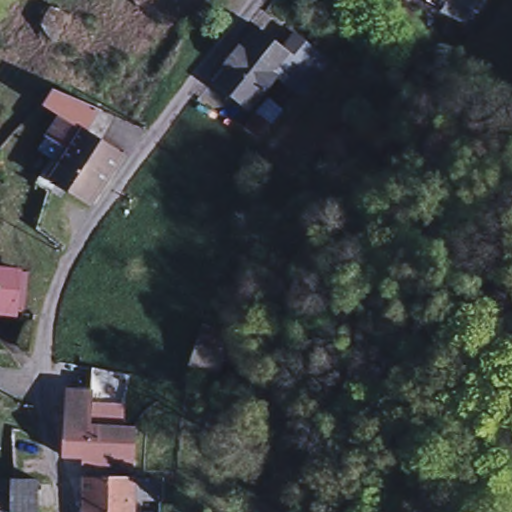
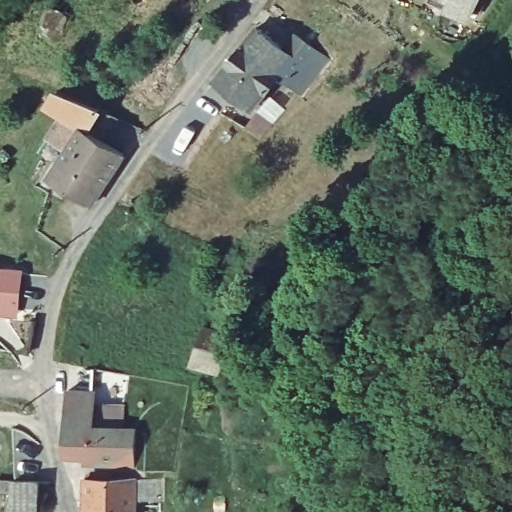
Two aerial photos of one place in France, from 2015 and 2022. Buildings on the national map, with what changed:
unchanged [(133,0),(143,0),(136,5),(133,0)]
unchanged [(455,0),(473,0),(469,7),(455,0)]
unchanged [(247,113),(211,85),(254,31),(281,53),(290,61),(274,80),(247,113)]
unchanged [(281,53),(294,38),(326,63),(297,98),(274,80),(290,61),(281,53)]
unchanged [(88,203),(48,176),(56,162),(36,149),(61,113),(46,104),(56,89),(94,106),(81,125),(123,153),(88,203)]
unchanged [(0,315),(0,277),(12,281),(20,283),(10,319),(2,316),(0,315)]
unchanged [(216,360),(212,372),(186,364),(193,344),(197,330),(247,346),(241,360),(239,367),(216,360)]
unchanged [(135,470),(119,470),(119,462),(116,462),(94,461),(94,456),(63,455),(63,424),(66,424),(66,418),(66,389),(91,389),(91,402),(106,402),(123,402),(123,422),(123,426),(136,426),(135,470)]
unchanged [(83,478),(131,478),(131,500),(83,500),(83,478)]
unchanged [(37,482),(37,512),(13,512),(13,481),(37,482)]
unchanged [(131,500),(132,512),(83,512),(83,500),(131,500)]

